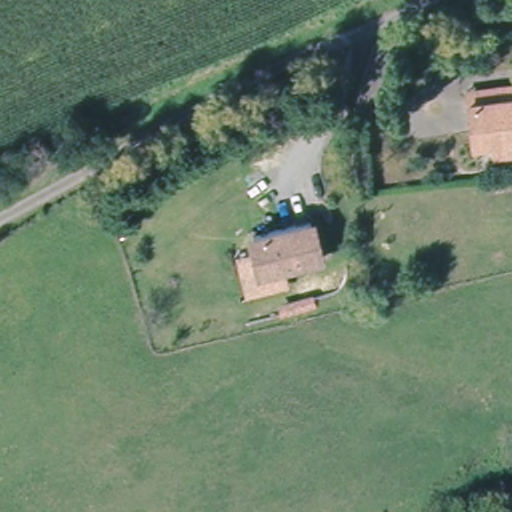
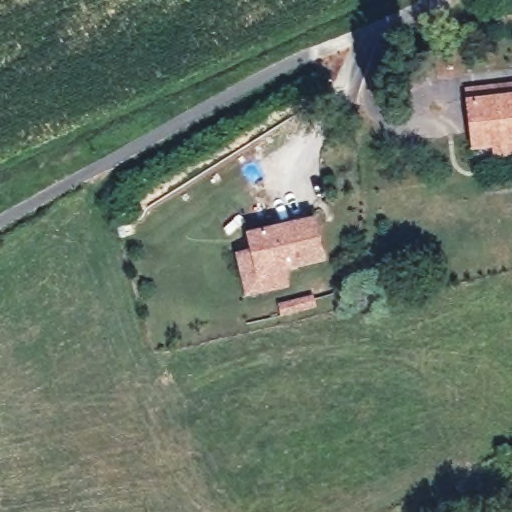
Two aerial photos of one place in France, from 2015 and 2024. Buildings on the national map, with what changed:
unchanged [(474,98),(512,94),(512,140),(476,143),(474,98)]
unchanged [(317,218),(326,261),(287,269),(266,273),(261,252),(256,231),(317,218)]
unchanged [(266,273),(287,269),(291,288),(252,295),(242,255),(261,252),(266,273)]

